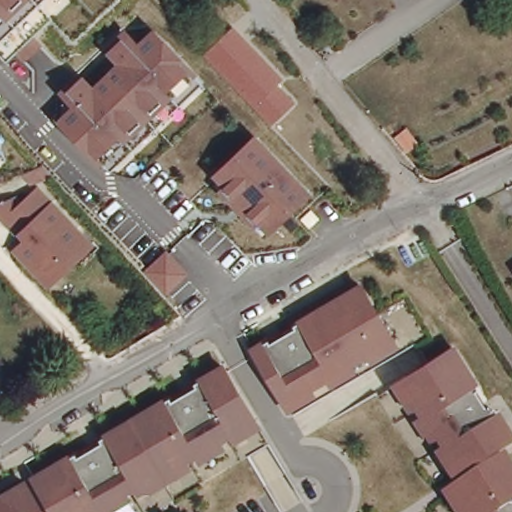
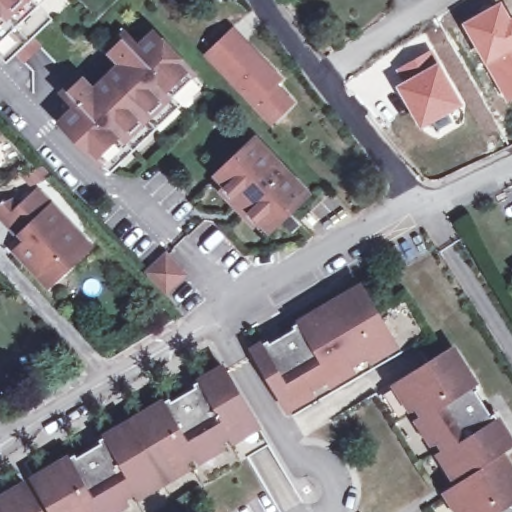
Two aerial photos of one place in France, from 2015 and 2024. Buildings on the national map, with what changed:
unchanged [(45,0),(0,45),(0,0),(45,0)]
new [(503,0),(512,15),(512,100),(506,103),(461,22),(500,0),(503,0)]
unchanged [(285,79),(279,85),(297,103),(272,125),(204,54),(235,27),(285,79)]
unchanged [(72,109),(59,94),(80,73),(93,86),(117,66),(105,52),(131,31),(140,42),(154,31),(197,74),(202,87),(112,175),(101,167),(55,125),(72,109)]
new [(420,129),(395,84),(401,80),(394,68),(432,46),(440,60),(465,104),(420,129)]
unchanged [(256,135),(313,197),(268,238),(210,175),(256,135)]
unchanged [(40,276),(14,249),(25,238),(20,234),(17,235),(2,219),(0,217),(0,203),(12,198),(19,204),(35,188),(78,232),(90,244),(78,255),(47,284),(40,276)]
new [(166,255),(170,259),(184,274),(167,291),(149,272),(166,255)]
unchanged [(362,280),(395,346),(288,412),(248,347),(362,280)]
unchanged [(512,432),(512,447),(505,451),(512,461),(512,512),(457,512),(440,485),(452,477),(392,379),(455,343),(512,432)]
unchanged [(27,474),(219,362),(259,429),(110,512),(0,512),(0,490),(27,474)]

